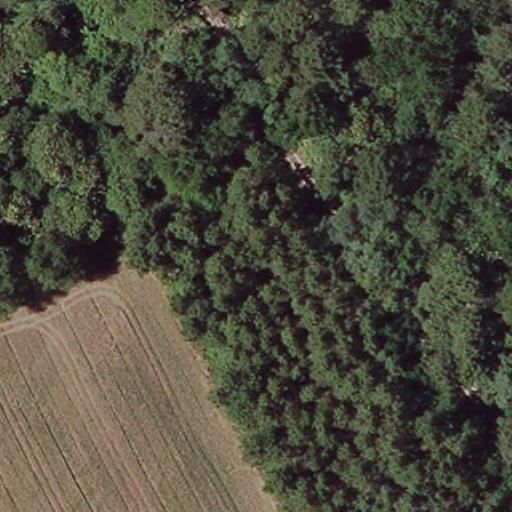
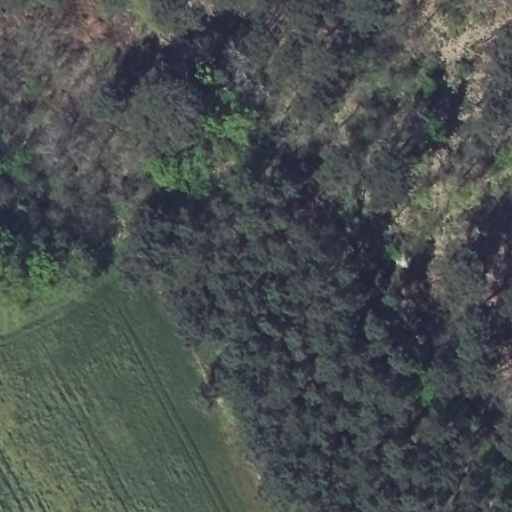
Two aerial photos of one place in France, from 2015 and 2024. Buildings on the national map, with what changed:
unchanged [(238,135),(255,159),(216,185),(201,161),(238,135)]

